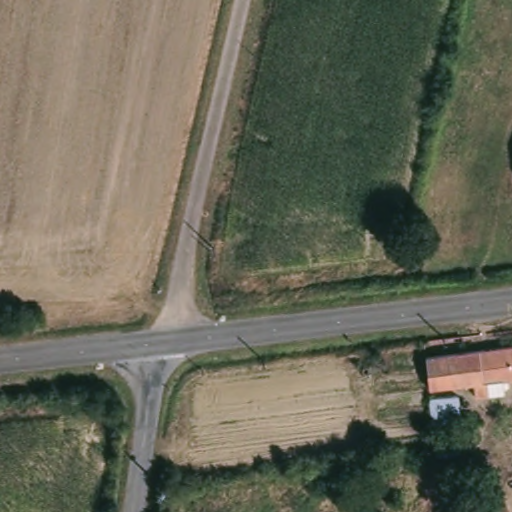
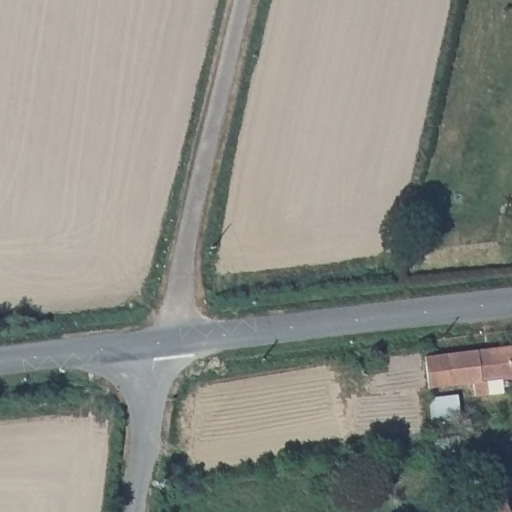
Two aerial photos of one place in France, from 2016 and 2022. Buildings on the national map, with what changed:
unchanged [(504,383),(505,395),(479,399),(478,387),(451,390),(446,359),(512,347),(512,382),(504,383)]
unchanged [(502,490),(512,512),(459,512),(502,490)]

